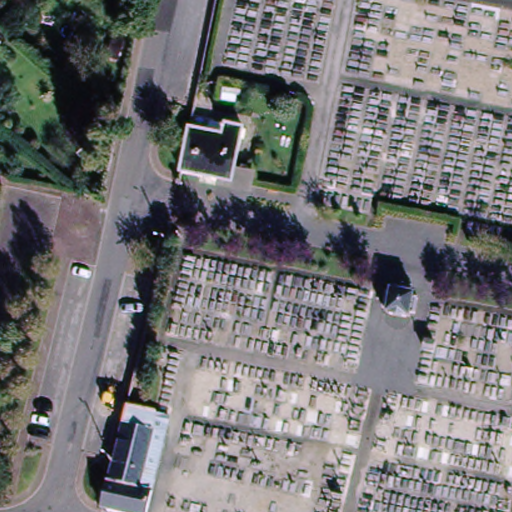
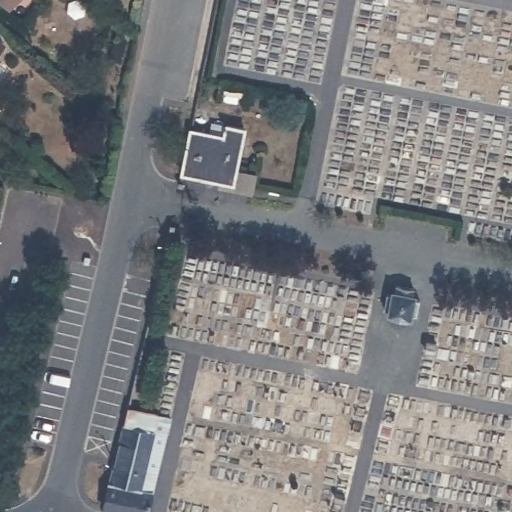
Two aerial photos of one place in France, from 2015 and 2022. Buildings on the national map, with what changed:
unchanged [(11,6),(3,0),(15,0),(11,6)]
unchanged [(7,39),(0,47),(0,33),(7,39)]
unchanged [(252,194),(218,186),(218,182),(179,173),(189,126),(210,131),(213,120),(223,124),(224,120),(243,125),(234,166),(257,171),(252,194)]
unchanged [(414,323),(386,318),(388,286),(418,291),(414,323)]
unchanged [(104,502),(105,493),(126,405),(154,412),(153,416),(167,420),(154,471),(144,512),(114,512),(101,509),(104,502)]

